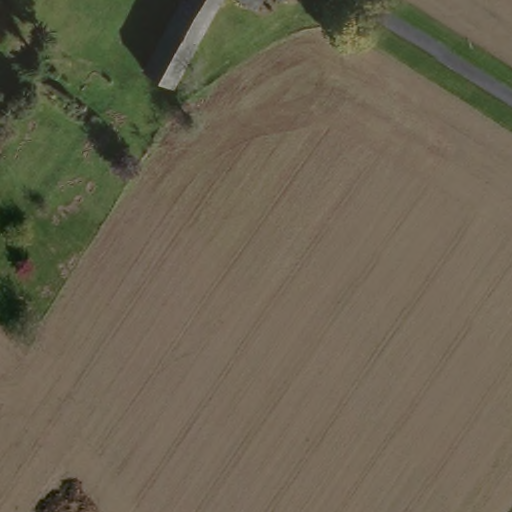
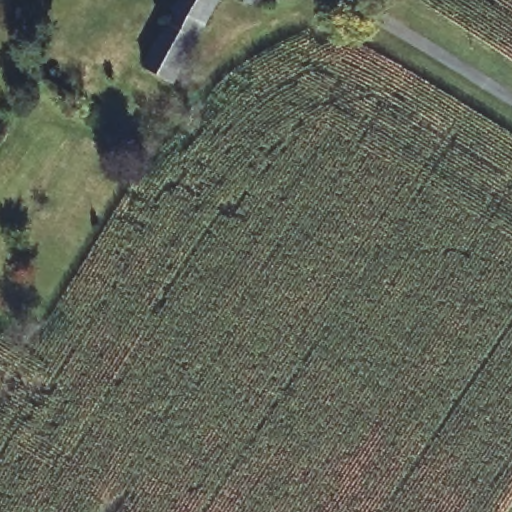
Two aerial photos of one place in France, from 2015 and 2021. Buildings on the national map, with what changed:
unchanged [(202,20),(192,36),(163,17),(173,0),(215,0),(202,20)]
unchanged [(250,8),(237,0),(255,0),(250,8)]
unchanged [(192,36),(174,64),(166,77),(138,59),(163,17),(192,36)]

